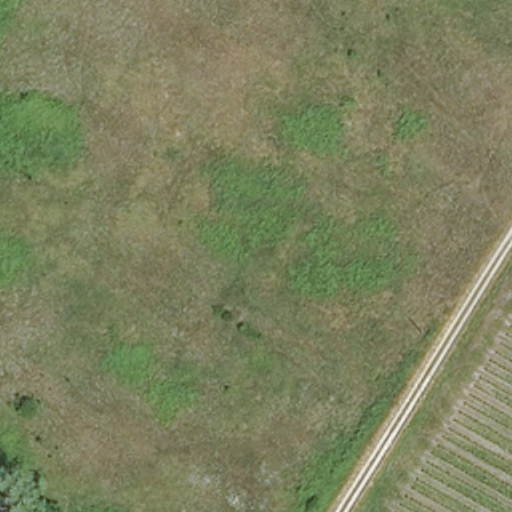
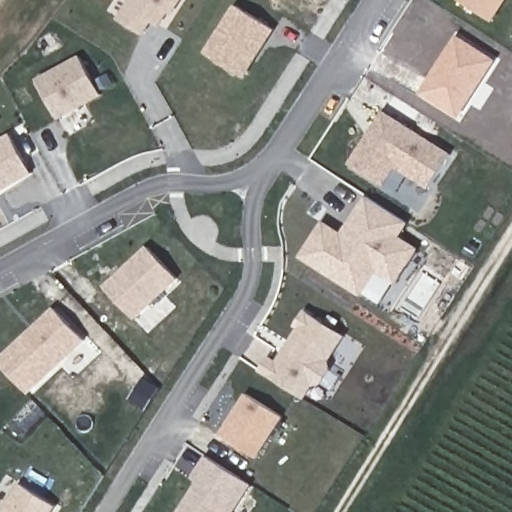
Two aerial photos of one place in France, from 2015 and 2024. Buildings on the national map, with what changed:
new [(162,13),(154,25),(147,20),(139,33),(116,19),(128,0),(175,0),(174,3),(167,13),(162,13)]
new [(491,21),(459,0),(505,0),(491,21)]
new [(234,7),(272,30),(241,76),(204,53),(234,7)]
new [(455,39),(491,62),(456,116),(420,93),(455,39)]
new [(77,58),(98,95),(56,119),(35,81),(77,58)]
new [(372,127),(381,112),(447,155),(427,187),(393,165),(381,184),(348,163),(365,137),(372,127)]
new [(15,181),(0,189),(0,139),(7,135),(21,161),(29,173),(15,181)]
new [(419,250),(395,286),(379,275),(362,298),(300,258),(323,222),(341,234),(366,197),(408,224),(400,237),(419,250)]
new [(145,248),(174,278),(131,318),(101,287),(145,248)]
new [(29,394),(0,363),(0,358),(54,307),(85,341),(29,394)]
new [(275,361),(282,350),(286,345),(297,327),(293,325),(302,311),(340,337),(325,360),(327,369),(318,383),(310,384),(300,398),(258,371),(267,357),(275,361)]
new [(245,396),(281,419),(255,459),(218,436),(245,396)]
new [(197,472),(206,457),(248,485),(230,512),(179,512),(197,483),(192,479),(197,472)]
new [(55,503),(49,512),(0,512),(0,509),(19,480),(55,503)]
demolished [(19,512),(0,512),(0,497),(19,512)]

